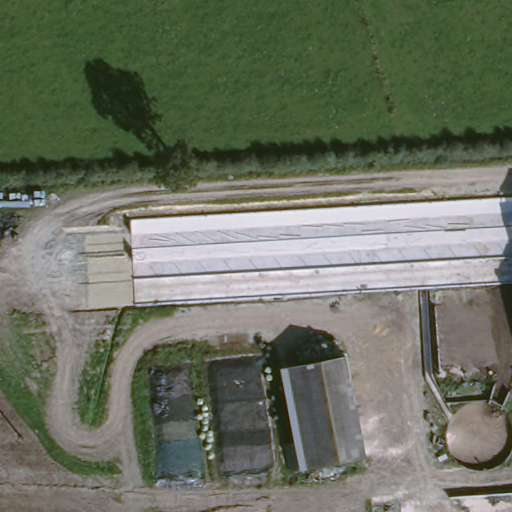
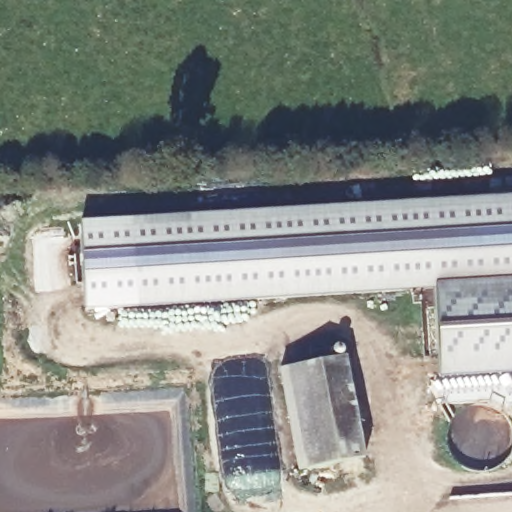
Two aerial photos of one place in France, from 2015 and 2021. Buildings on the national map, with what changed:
new [(434,288),(135,307),(129,219),(512,196),(512,376),(440,379),(434,288)]
unchanged [(362,461),(311,471),(292,372),(343,362),(362,461)]

